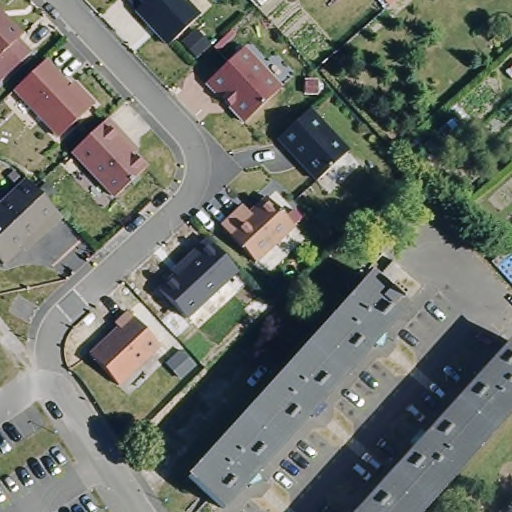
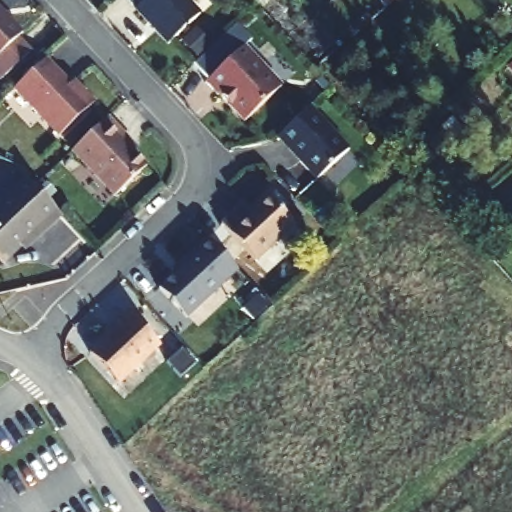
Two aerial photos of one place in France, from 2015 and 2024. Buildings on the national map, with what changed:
unchanged [(171,40),(159,26),(159,24),(152,16),(150,18),(139,5),(143,0),(193,0),(202,10),(171,40)]
unchanged [(15,37),(29,51),(0,77),(0,13),(19,34),(15,37)]
unchanged [(245,43),(283,83),(247,117),(221,90),(220,91),(207,79),(245,43)]
unchanged [(72,89),(75,86),(91,103),(55,135),(12,88),(43,58),(72,89)]
unchanged [(332,189),(280,133),(312,105),(362,160),(332,189)]
unchanged [(113,196),(70,150),(105,117),(126,140),(122,143),(145,166),(113,196)]
unchanged [(60,215),(45,229),(42,226),(2,263),(0,261),(0,201),(25,178),(60,215)]
unchanged [(295,222),(257,257),(223,221),(244,201),(250,209),(269,192),(295,222)]
unchanged [(185,320),(150,283),(205,230),(240,265),(185,320)]
demolished [(421,286),(404,305),(404,308),(222,509),(186,476),(374,268),(380,273),(392,260),(421,286)]
unchanged [(162,346),(120,386),(92,355),(121,328),(118,324),(130,313),(162,346)]
demolished [(512,336),(512,409),(420,512),(353,512),(512,336)]

